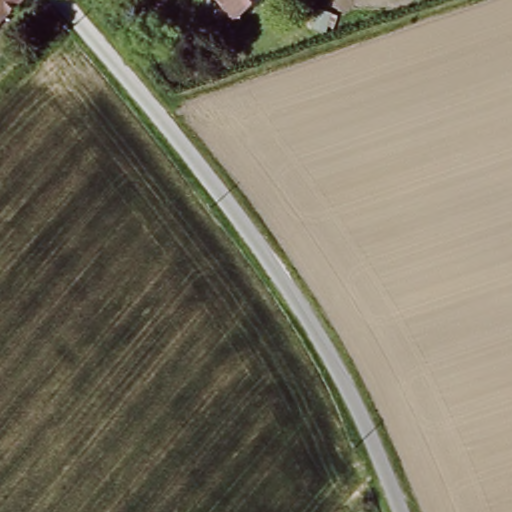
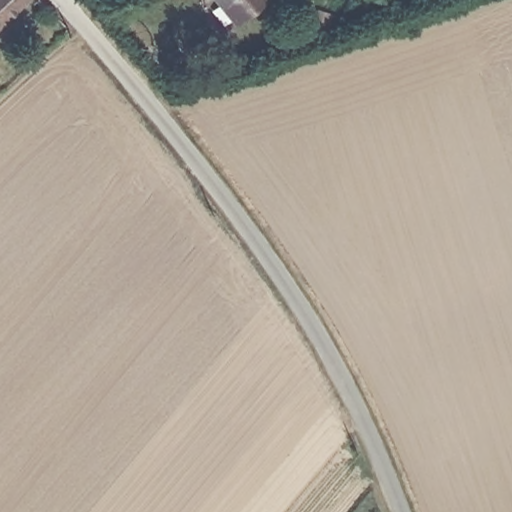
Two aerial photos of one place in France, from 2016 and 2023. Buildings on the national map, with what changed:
unchanged [(0,10),(0,0),(10,0),(0,10)]
unchanged [(236,20),(220,0),(260,0),(236,20)]

